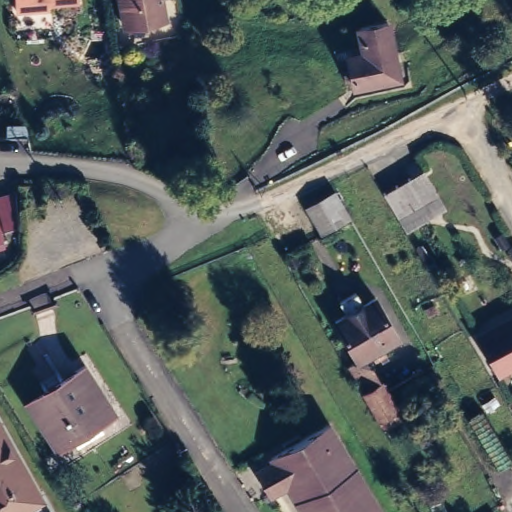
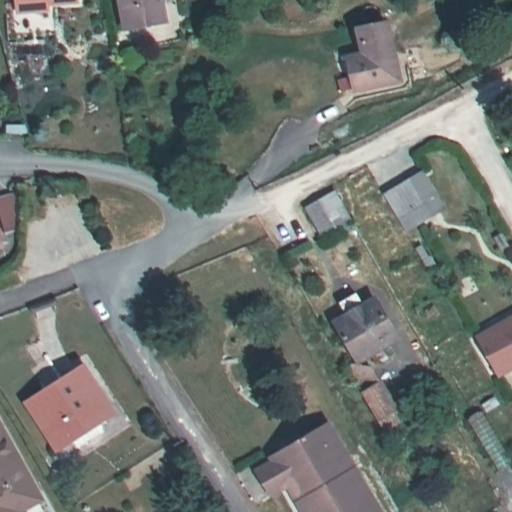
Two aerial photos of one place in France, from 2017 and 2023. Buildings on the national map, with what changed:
unchanged [(74,4),(44,8),(45,14),(14,18),(12,0),(73,0),(74,4)]
unchanged [(116,0),(161,0),(164,17),(121,25),(116,0)]
unchanged [(399,84),(355,93),(349,63),(364,59),(359,35),(387,29),(399,84)]
unchanged [(7,125),(22,125),(22,132),(7,132),(7,125)]
unchanged [(383,193),(410,177),(422,170),(445,208),(432,216),(405,231),(383,193)]
unchanged [(350,217),(322,233),(307,208),(335,192),(350,217)]
unchanged [(0,226),(0,208),(12,204),(13,222),(0,226)]
unchanged [(365,359),(353,366),(330,326),(342,319),(335,307),(350,298),(357,310),(369,303),(392,342),(377,352),(380,358),(369,364),(365,359)]
unchanged [(474,342),(512,321),(512,368),(494,378),(474,342)]
unchanged [(347,368),(363,370),(396,425),(378,436),(372,424),(374,423),(342,371),(347,368)]
unchanged [(67,444),(52,453),(22,406),(78,371),(107,418),(93,427),(98,435),(72,452),(67,444)]
unchanged [(486,411),(482,404),(494,396),(499,404),(486,411)]
unchanged [(482,410),(512,460),(497,469),(468,419),(482,410)]
unchanged [(270,498),(257,477),(275,467),(272,462),(328,428),(377,512),(301,512),(287,488),(270,498)]
unchanged [(15,512),(0,512),(0,443),(33,501),(15,512)]

